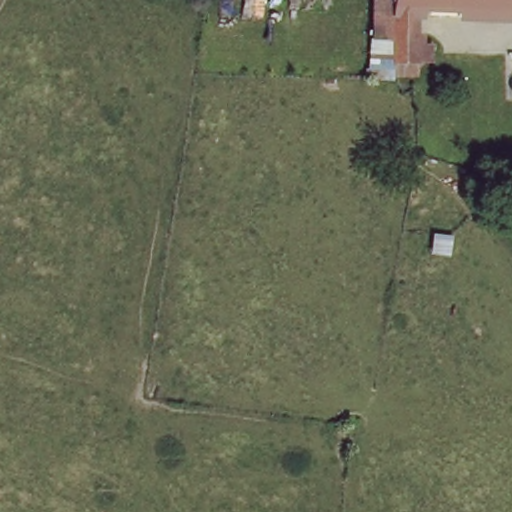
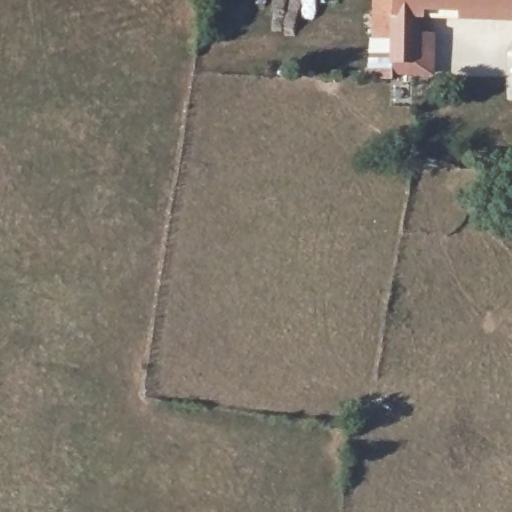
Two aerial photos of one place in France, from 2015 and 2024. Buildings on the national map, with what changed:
unchanged [(373,0),(396,0),(393,36),(370,34),(373,0)]
unchanged [(512,0),(512,16),(416,13),(413,73),(390,76),(393,36),(396,0),(512,0)]

